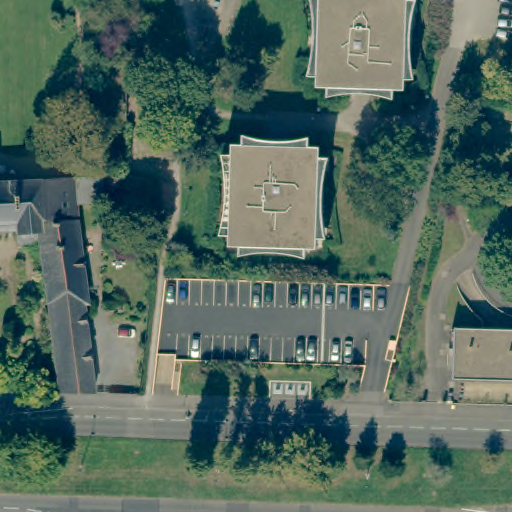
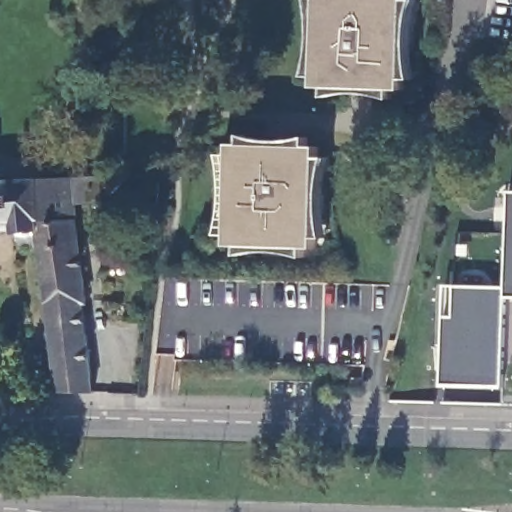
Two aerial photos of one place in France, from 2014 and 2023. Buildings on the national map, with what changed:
unchanged [(323,89),(324,0),(412,0),(411,89),(323,89)]
unchanged [(222,136),(297,137),(308,137),(308,142),(307,239),(221,237),(222,140),(222,136)]
unchanged [(120,178),(106,194),(92,194),(92,198),(74,199),(85,298),(82,298),(94,388),(60,387),(50,299),(47,299),(41,242),(20,244),(17,225),(0,227),(0,177),(2,177),(122,170),(120,178)]
new [(510,192),(512,192),(512,405),(504,404),(503,384),(445,384),(447,284),(507,288),(510,192)]
demolished [(455,319),(512,320),(512,373),(452,372),(455,319)]

